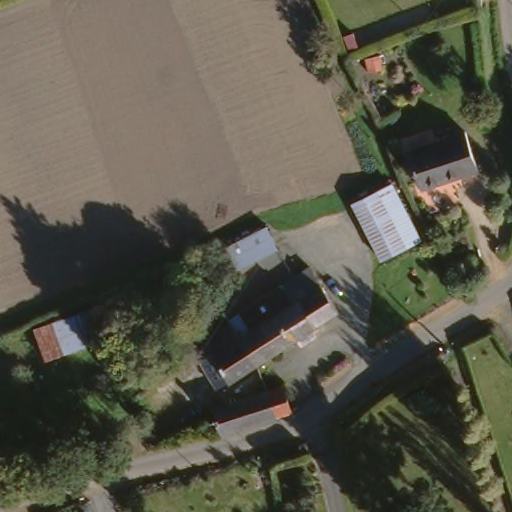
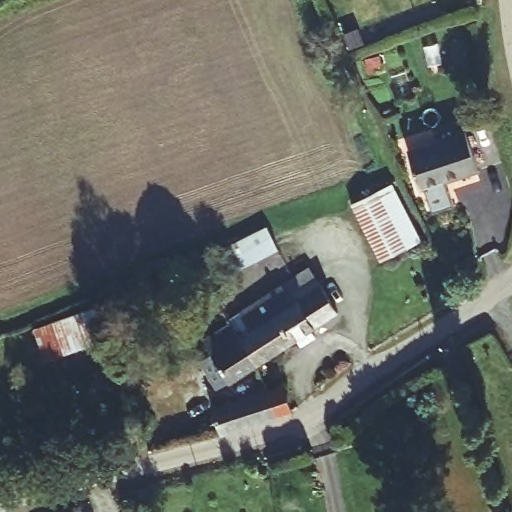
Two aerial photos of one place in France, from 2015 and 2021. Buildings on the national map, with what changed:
unchanged [(416,192),(403,156),(460,137),(472,174),(416,192)]
unchanged [(371,254),(349,206),(386,189),(406,231),(411,243),(408,245),(375,261),(371,254)]
unchanged [(276,252),(231,276),(219,251),(263,226),(276,252)]
unchanged [(273,314),(226,343),(220,332),(216,324),(306,271),(316,287),(273,314)]
unchanged [(331,312),(266,360),(243,373),(226,343),(273,314),(316,287),(331,312)]
unchanged [(86,344),(48,357),(35,327),(74,313),(86,344)]
unchanged [(193,370),(206,362),(197,345),(220,332),(226,343),(243,373),(218,386),(206,392),(193,370)]
unchanged [(266,390),(274,408),(261,416),(219,433),(211,413),(253,396),(266,390)]

